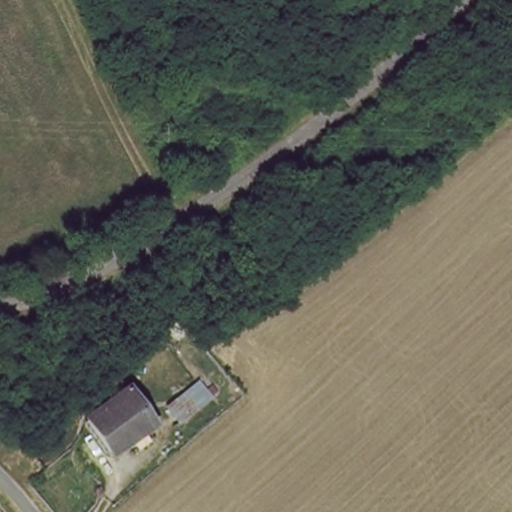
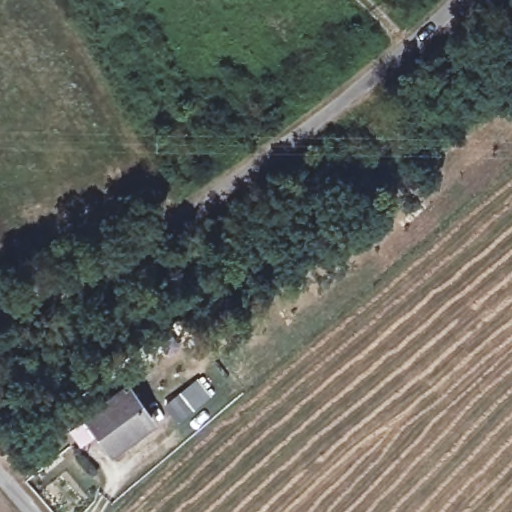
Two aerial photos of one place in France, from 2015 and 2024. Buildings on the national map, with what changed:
unchanged [(181,419),(169,403),(189,388),(202,403),(181,419)]
unchanged [(150,423),(111,454),(87,424),(127,393),(150,423)]

